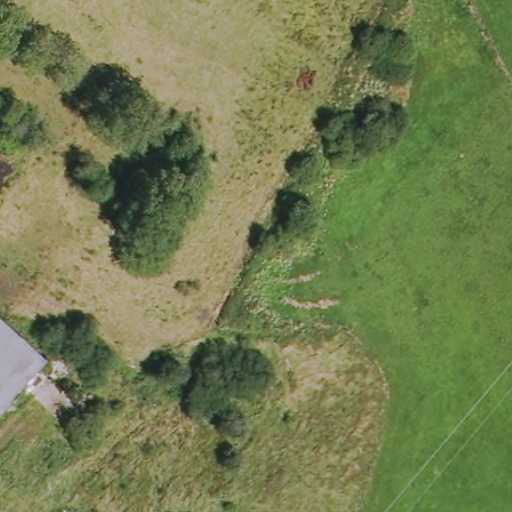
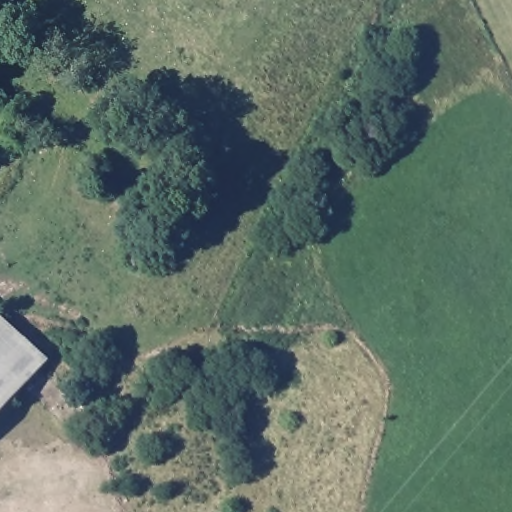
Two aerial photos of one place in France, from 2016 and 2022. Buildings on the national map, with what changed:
unchanged [(0,315),(55,370),(0,421),(0,315)]

